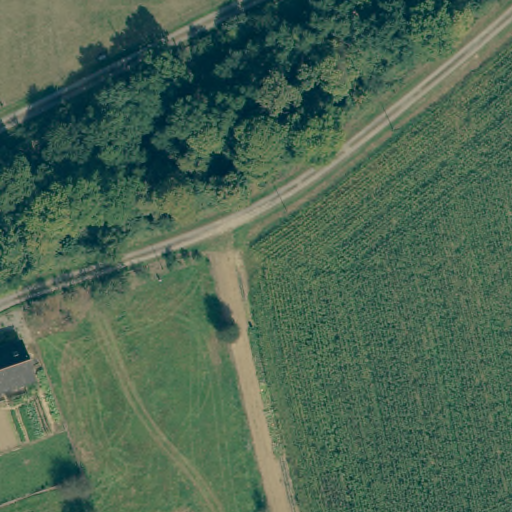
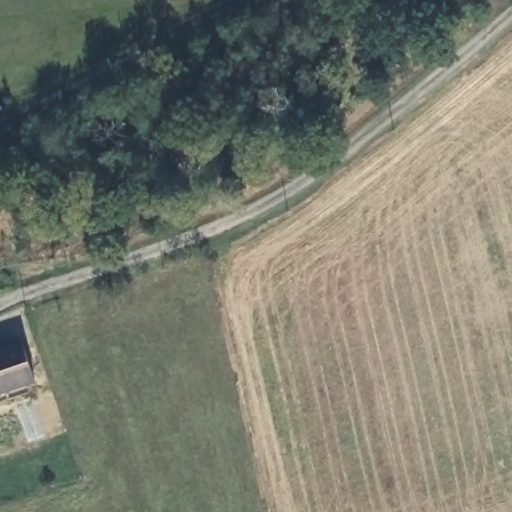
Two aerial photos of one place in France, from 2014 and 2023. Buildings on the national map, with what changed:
unchanged [(32,385),(0,395),(0,353),(21,347),(32,385)]

